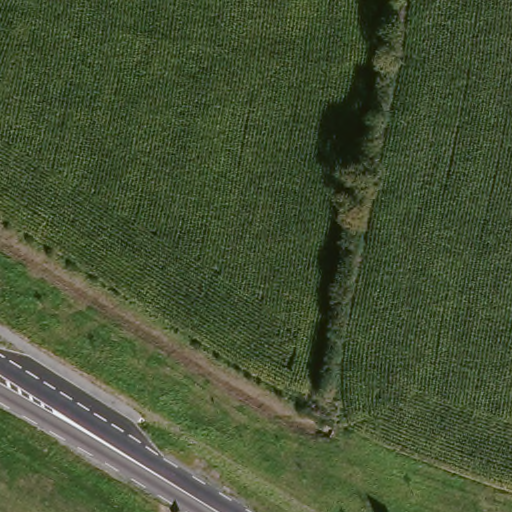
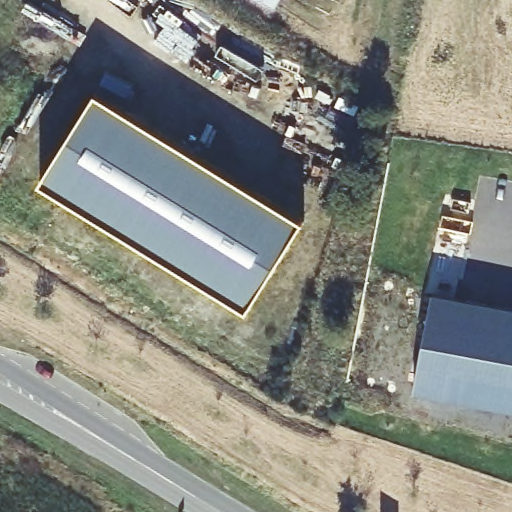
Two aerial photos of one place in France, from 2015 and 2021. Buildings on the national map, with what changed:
new [(41,184),(96,96),(303,224),(246,311),(41,184)]
unchanged [(426,297),(512,315),(512,417),(406,395),(426,297)]

